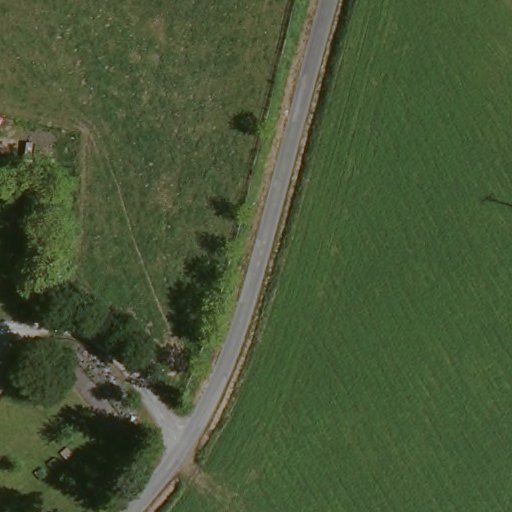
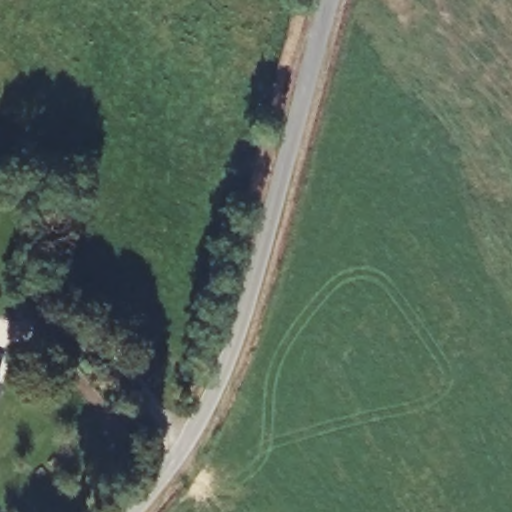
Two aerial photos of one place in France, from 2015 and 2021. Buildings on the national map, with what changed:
unchanged [(0,385),(0,379),(2,380),(0,385)]

